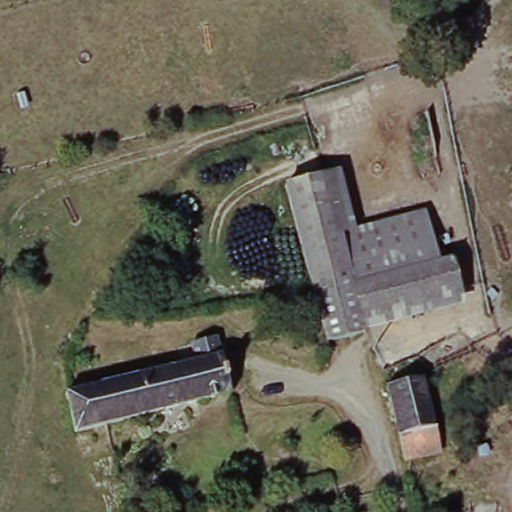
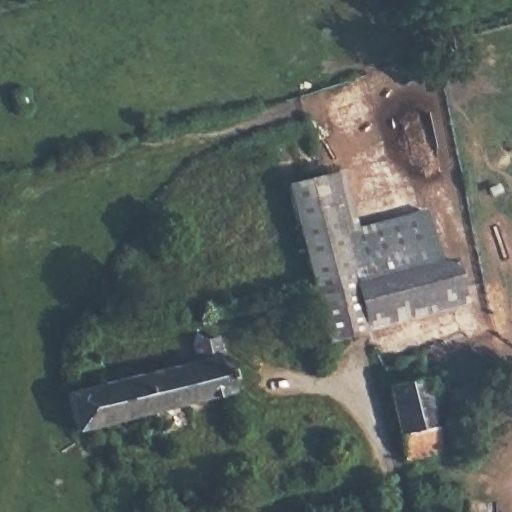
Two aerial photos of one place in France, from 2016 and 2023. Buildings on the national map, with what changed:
unchanged [(315,284),(288,188),(322,178),(338,236),(423,212),(436,264),(455,259),(465,292),(368,320),(373,335),(373,337),(367,338),(330,349),(311,286),(315,284)]
unchanged [(465,292),(469,309),(373,335),(368,320),(465,292)]
unchanged [(137,383),(182,371),(197,368),(195,352),(223,346),(235,395),(179,410),(175,422),(164,412),(102,430),(77,437),(69,401),(137,383)]
unchanged [(396,396),(427,388),(447,459),(414,468),(396,396)]

